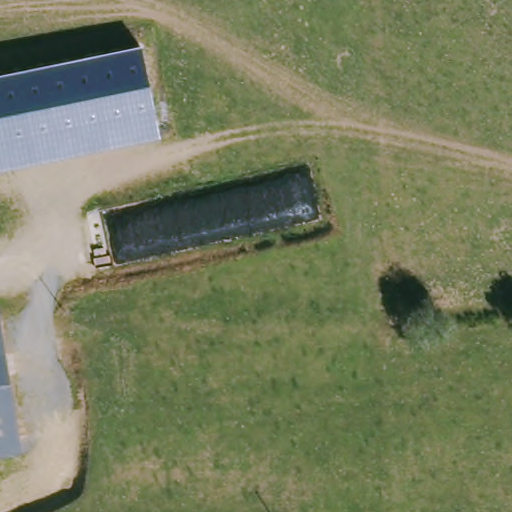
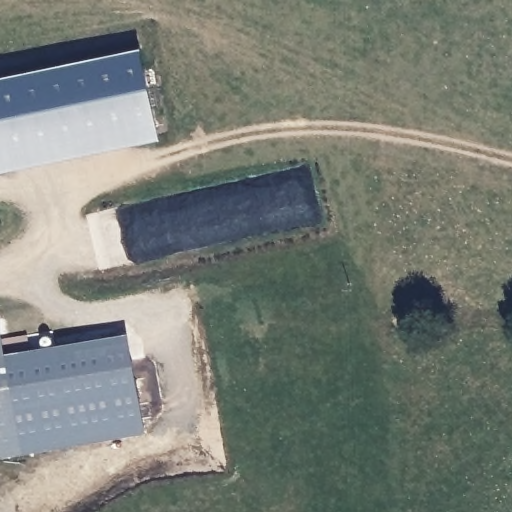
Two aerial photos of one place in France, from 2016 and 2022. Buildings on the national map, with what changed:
unchanged [(141,46),(159,137),(0,170),(0,74),(141,46)]
unchanged [(23,454),(0,458),(0,312),(23,454)]
new [(23,454),(6,351),(127,333),(145,434),(23,454)]

